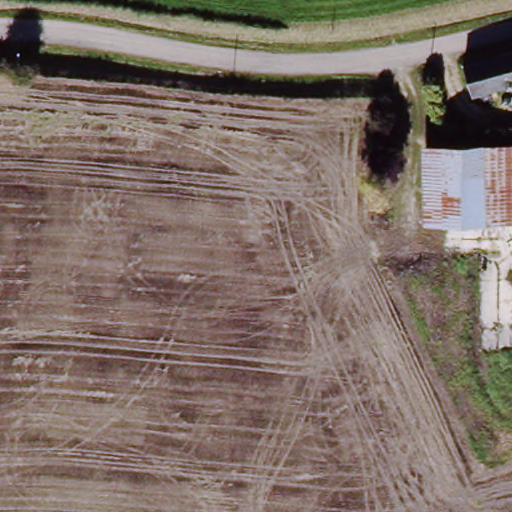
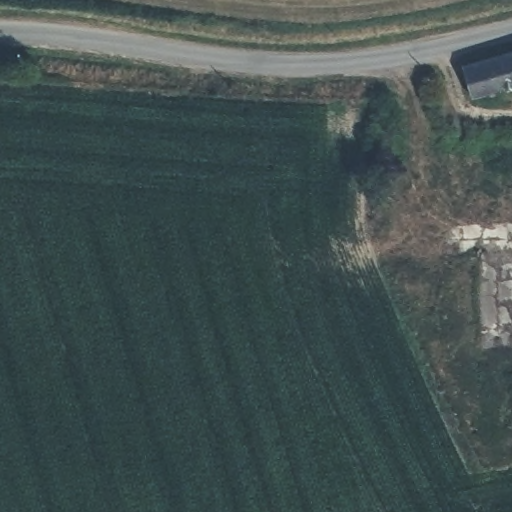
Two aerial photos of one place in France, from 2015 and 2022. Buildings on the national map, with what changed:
unchanged [(476,101),(445,110),(435,73),(460,69),(512,54),(512,90),(476,101)]
demolished [(483,225),(420,225),(421,146),(480,147),(512,150),(512,226),(483,225)]

